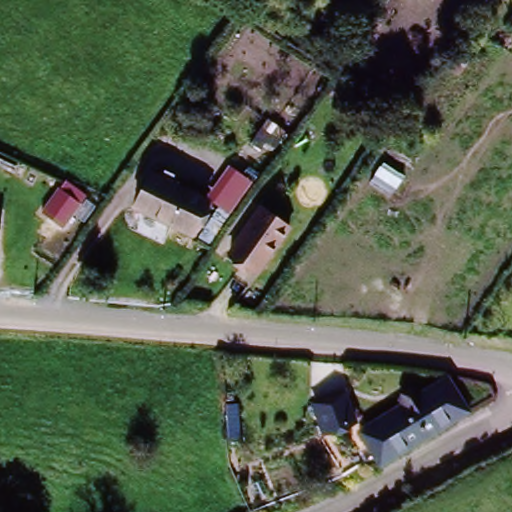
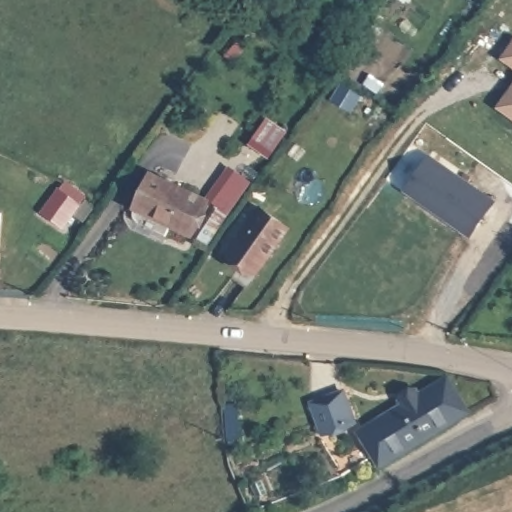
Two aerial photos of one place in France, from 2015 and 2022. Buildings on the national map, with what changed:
new [(500,60),(512,44),(512,68),(500,60)]
new [(512,87),(512,119),(497,108),(512,87)]
new [(498,201),(472,238),(405,191),(430,155),(498,201)]
unchanged [(232,163),(257,179),(232,214),(212,192),(232,163)]
unchanged [(147,176),(205,202),(190,235),(133,209),(147,176)]
unchanged [(65,182),(87,197),(63,230),(40,215),(65,182)]
unchanged [(227,254),(260,206),(290,227),(257,274),(227,254)]
unchanged [(0,214),(2,215),(0,240),(0,214)]
unchanged [(364,430),(435,382),(450,399),(377,447),(364,430)]
unchanged [(340,398),(352,421),(325,437),(312,413),(340,398)]
unchanged [(450,399),(461,415),(389,465),(377,447),(450,399)]
new [(242,410),(245,446),(230,447),(226,411),(242,410)]

